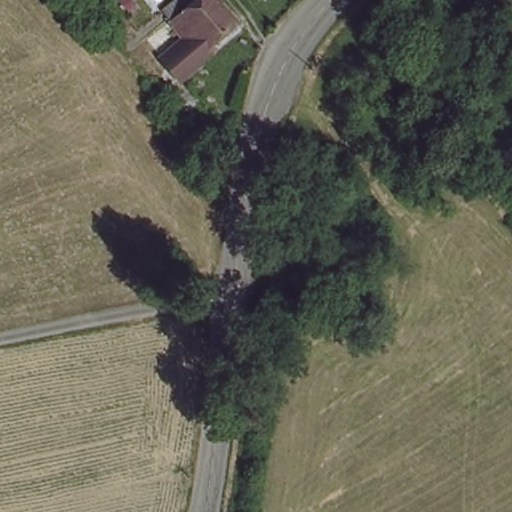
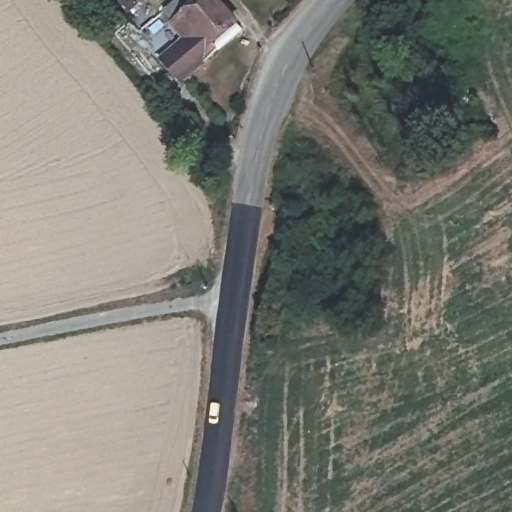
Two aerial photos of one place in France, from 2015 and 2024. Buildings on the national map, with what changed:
unchanged [(225,55),(212,66),(197,79),(190,85),(170,61),(180,52),(192,42),(178,26),(168,14),(185,0),(222,0),(243,24),(250,33),(225,55)]

